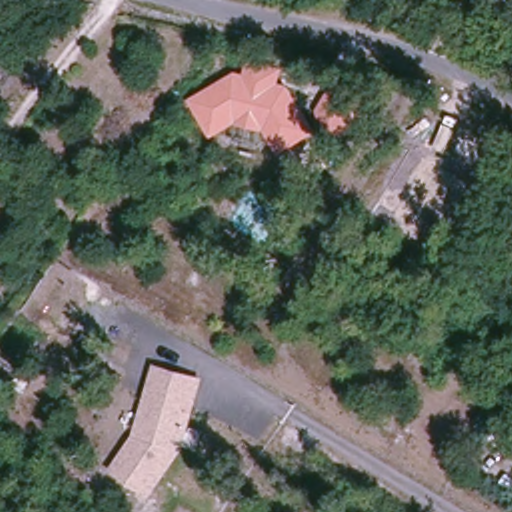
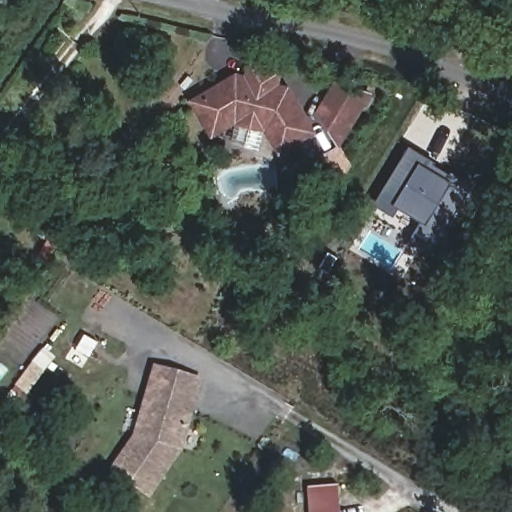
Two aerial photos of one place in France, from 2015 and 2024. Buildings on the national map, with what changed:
unchanged [(283,82),(299,93),(314,136),(287,152),(277,138),(239,126),(213,138),(191,97),(240,69),(245,74),(249,72),(250,64),(285,70),(283,82)]
unchanged [(345,143),(317,111),(337,78),(373,90),(345,143)]
new [(411,147),(474,186),(432,255),(407,243),(419,219),(399,207),(395,216),(374,204),(411,147)]
unchanged [(185,448),(151,496),(110,467),(135,433),(154,364),(205,376),(185,448)]
new [(308,487),(339,485),(341,512),(310,512),(308,487)]

